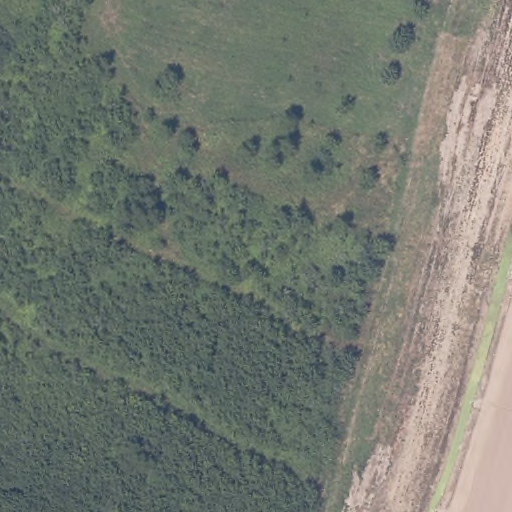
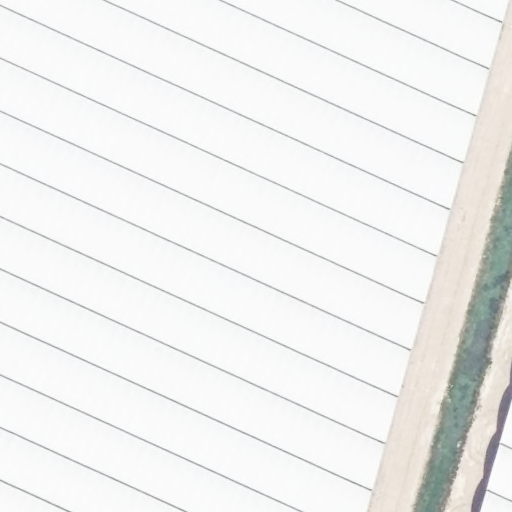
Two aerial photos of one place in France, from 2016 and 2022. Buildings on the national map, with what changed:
new [(0,512),(0,0),(507,0),(365,512),(0,512)]
new [(512,512),(478,512),(512,391),(512,512)]

